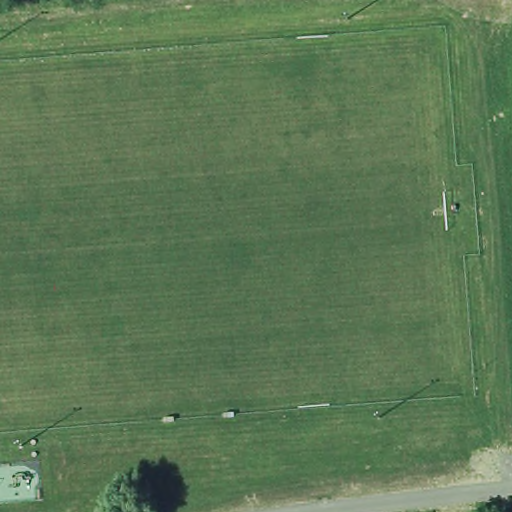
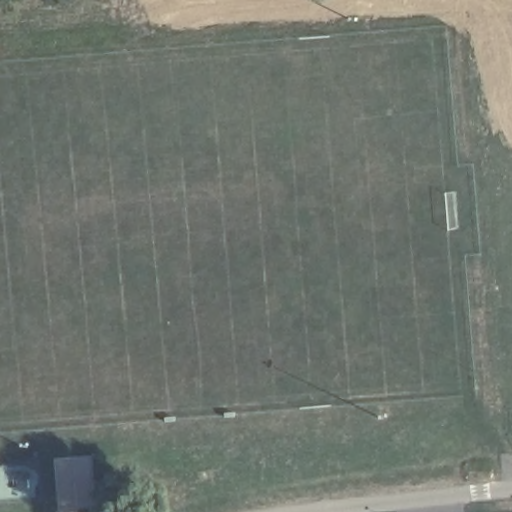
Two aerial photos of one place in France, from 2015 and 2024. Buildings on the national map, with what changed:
new [(93,455),(96,509),(67,512),(57,512),(53,458),(93,455)]

